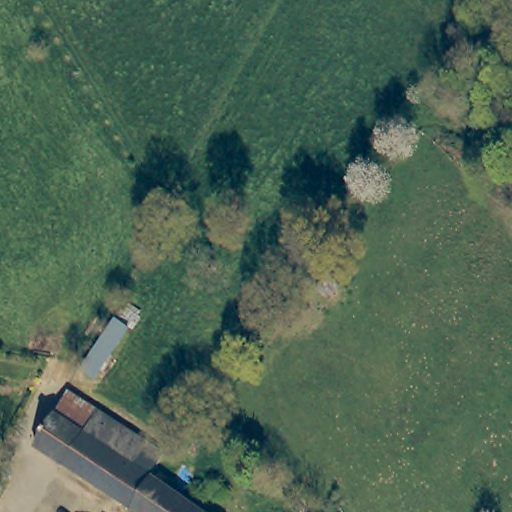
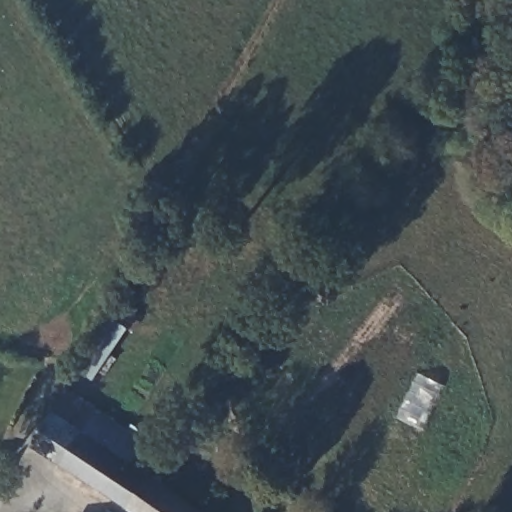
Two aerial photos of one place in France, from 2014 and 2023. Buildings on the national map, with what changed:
unchanged [(62,387),(67,390),(134,431),(140,435),(127,456),(145,468),(144,470),(120,503),(32,443),(62,387)]
unchanged [(120,503),(144,470),(168,489),(199,512),(132,512),(129,509),(120,503)]

